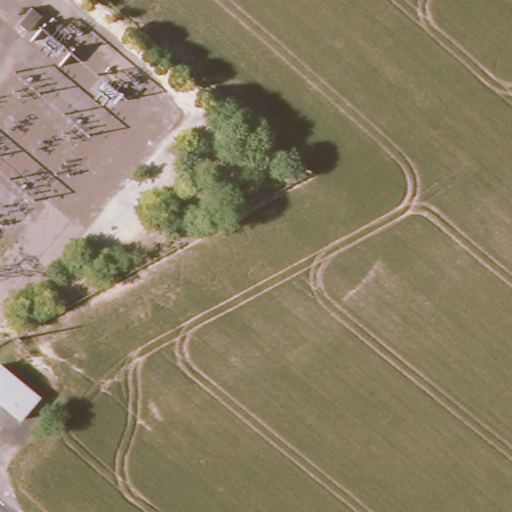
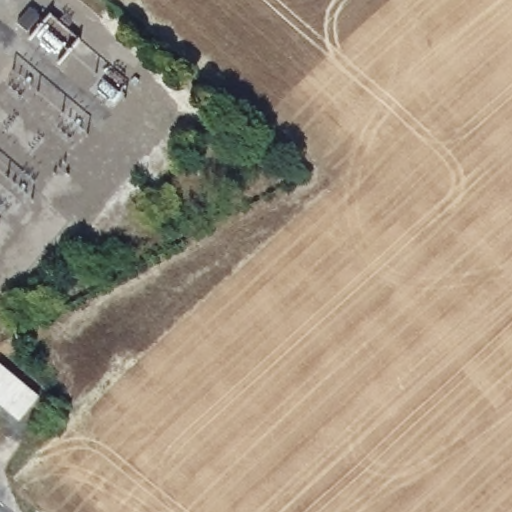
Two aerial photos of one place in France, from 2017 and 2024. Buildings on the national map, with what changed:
unchanged [(18,425),(0,409),(0,366),(40,401),(18,425)]

